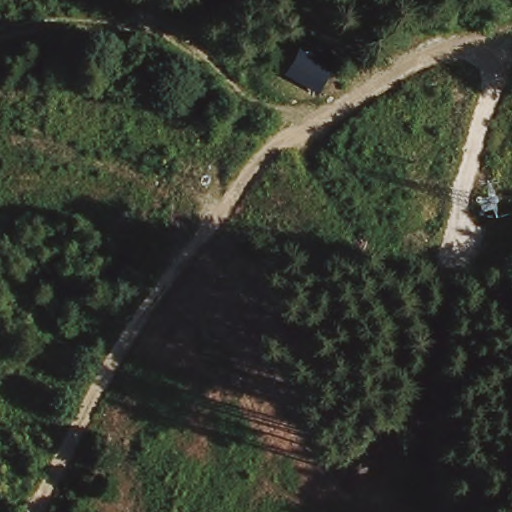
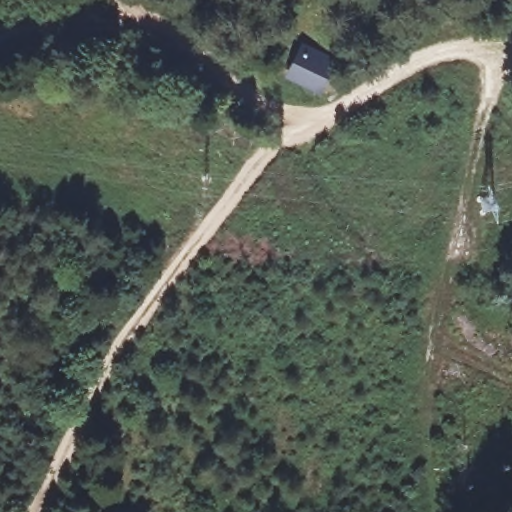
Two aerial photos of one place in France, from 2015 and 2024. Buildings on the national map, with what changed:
unchanged [(333,51),(317,82),(289,69),(306,39),(333,51)]

